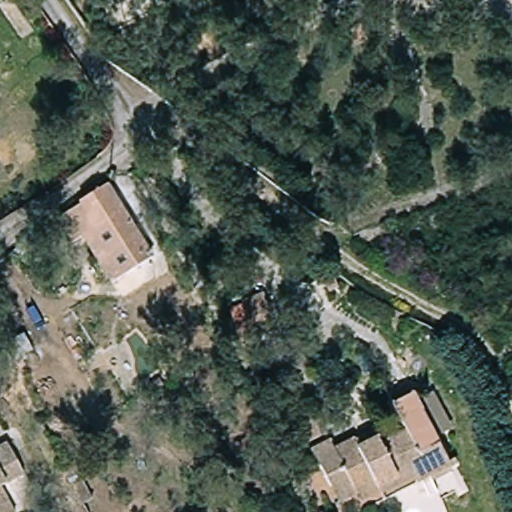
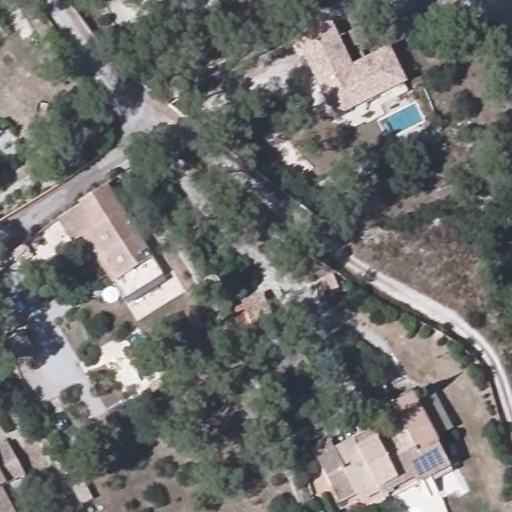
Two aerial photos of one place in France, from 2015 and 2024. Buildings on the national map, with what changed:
new [(331,22),(351,65),(389,47),(406,83),(348,111),(342,111),(335,110),(330,108),(327,105),(303,58),(298,60),(289,42),(331,22)]
unchanged [(141,270),(152,286),(126,302),(82,236),(71,240),(58,220),(80,207),(83,209),(107,193),(118,210),(126,222),(152,263),(141,270)]
unchanged [(226,309),(239,305),(237,301),(259,292),(275,332),(253,341),(252,338),(239,343),(226,309)]
unchanged [(366,432),(374,445),(399,432),(385,406),(407,395),(411,401),(427,394),(447,431),(430,439),(434,445),(432,446),(445,470),(360,512),(358,512),(350,498),(333,507),(321,481),(338,472),(328,452),(366,432)]
unchanged [(4,443),(20,473),(0,485),(0,445),(4,443)]
unchanged [(11,512),(0,512),(0,491),(11,512)]

